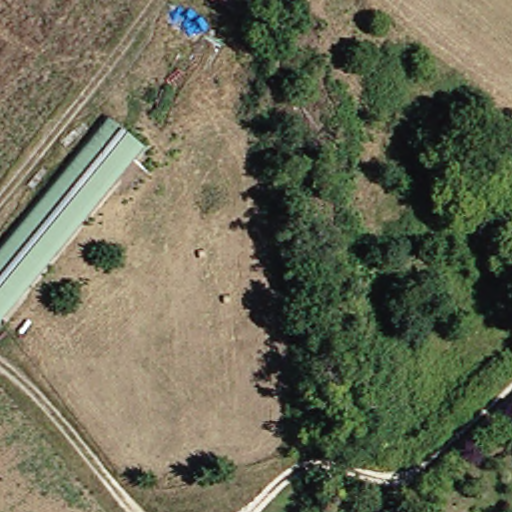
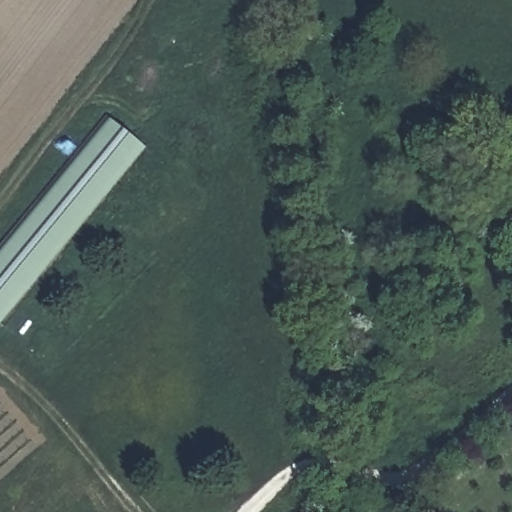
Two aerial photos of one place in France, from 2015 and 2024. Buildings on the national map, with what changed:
unchanged [(4,317),(0,314),(0,254),(113,117),(147,146),(4,317)]

